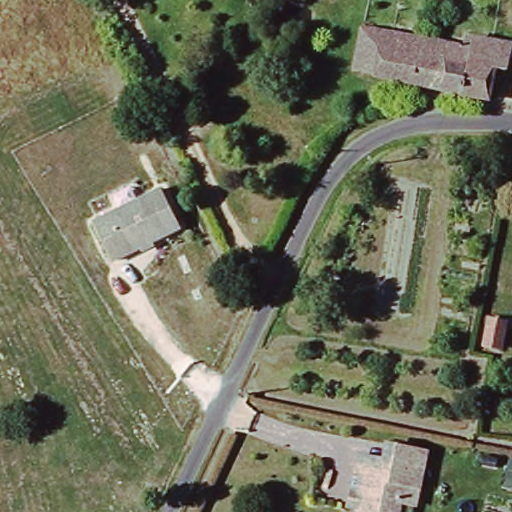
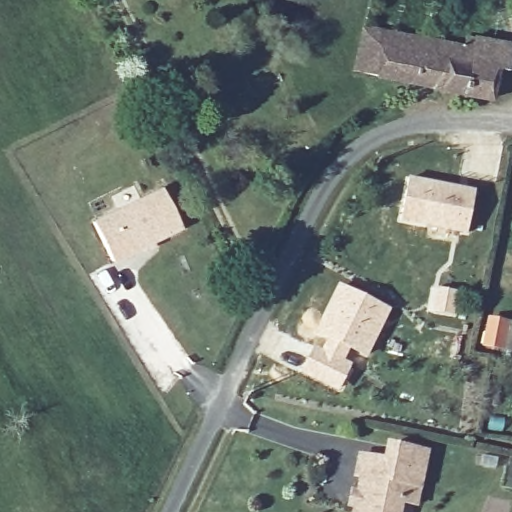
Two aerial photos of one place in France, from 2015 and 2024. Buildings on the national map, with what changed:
unchanged [(423,41),(416,84),(356,74),(362,31),(423,41)]
unchanged [(512,55),(510,70),(495,68),(492,96),(465,91),(471,49),(472,40),(512,47),(512,55)]
unchanged [(423,41),(471,49),(465,91),(416,84),(423,41)]
new [(406,176),(476,189),(467,234),(397,222),(406,176)]
unchanged [(181,227),(117,259),(97,219),(160,188),(181,227)]
new [(337,283),(391,309),(367,358),(350,350),(317,336),(313,333),(337,283)]
new [(431,285),(464,292),(460,318),(426,312),(431,285)]
unchanged [(482,347),(488,318),(505,321),(499,350),(482,347)]
new [(317,336),(350,350),(345,360),(352,364),(338,391),(327,385),(332,375),(305,361),(317,336)]
unchanged [(419,487),(416,503),(400,500),(397,512),(354,512),(361,473),(355,472),(361,456),(382,463),(388,443),(427,451),(419,487)]

